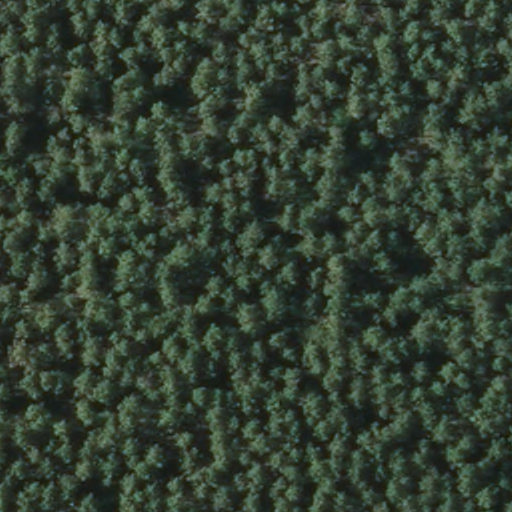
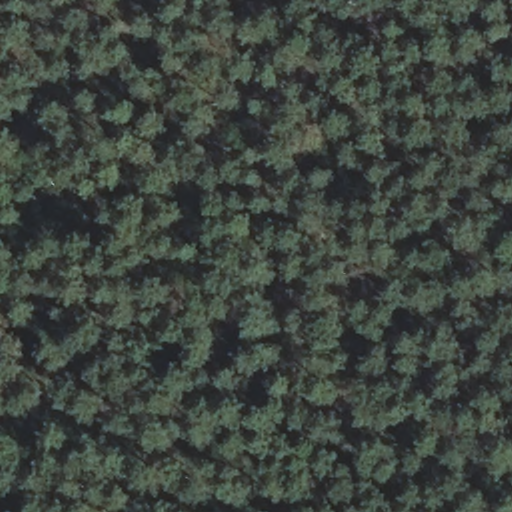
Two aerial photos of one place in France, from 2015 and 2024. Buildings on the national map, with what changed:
[]

